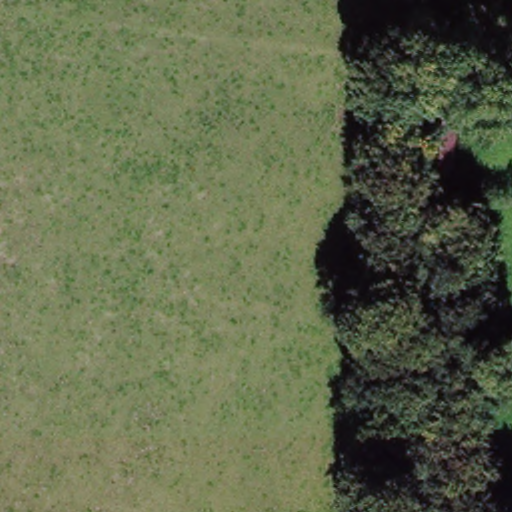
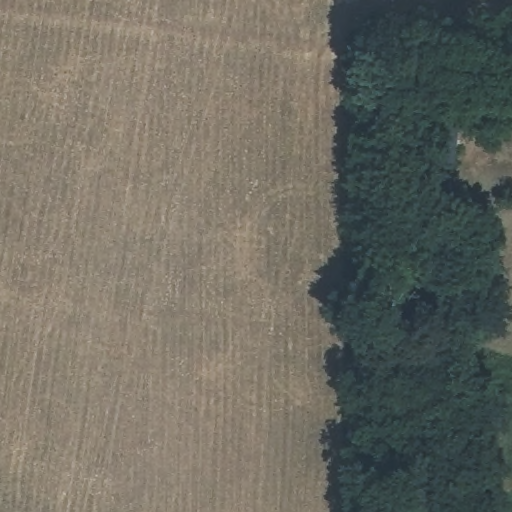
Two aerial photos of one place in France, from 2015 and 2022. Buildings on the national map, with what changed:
unchanged [(455,170),(429,167),(433,100),(458,101),(455,170)]

